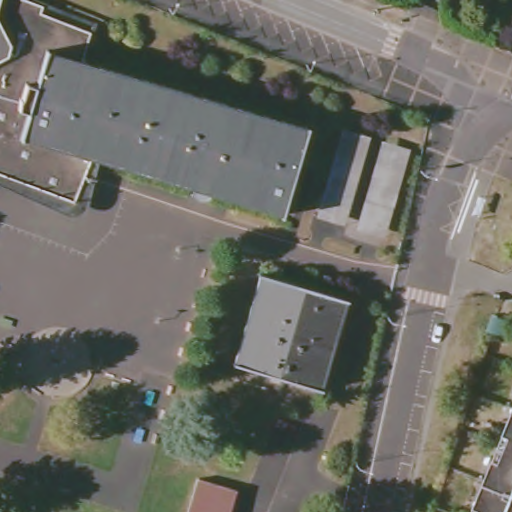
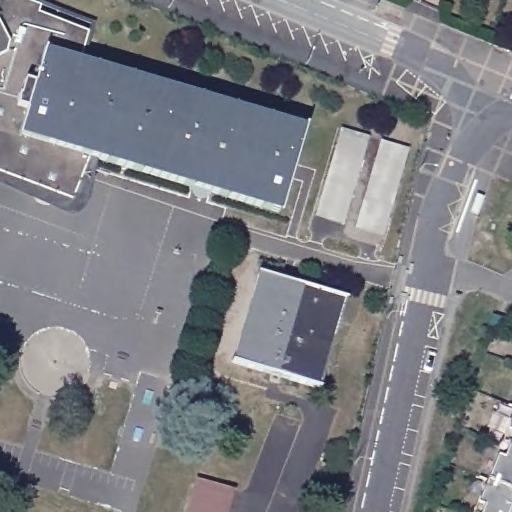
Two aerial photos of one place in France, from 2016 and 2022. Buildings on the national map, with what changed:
unchanged [(36,10),(34,17),(87,33),(77,62),(300,128),(300,126),(302,127),(277,216),(273,215),(274,212),(93,159),(88,158),(70,201),(0,175),(0,0),(4,0),(36,10)]
unchanged [(370,139),(343,226),(314,218),(340,130),(370,139)]
unchanged [(410,150),(383,239),(353,230),(380,141),(410,150)]
unchanged [(349,300),(348,303),(346,302),(322,387),(325,388),(323,391),(232,365),(232,361),(235,362),(260,277),(257,276),(258,274),(349,300)]
unchanged [(494,449),(497,441),(510,408),(512,404),(512,512),(467,512),(480,482),(494,449)]
unchanged [(229,512),(187,512),(196,479),(235,491),(229,512)]

